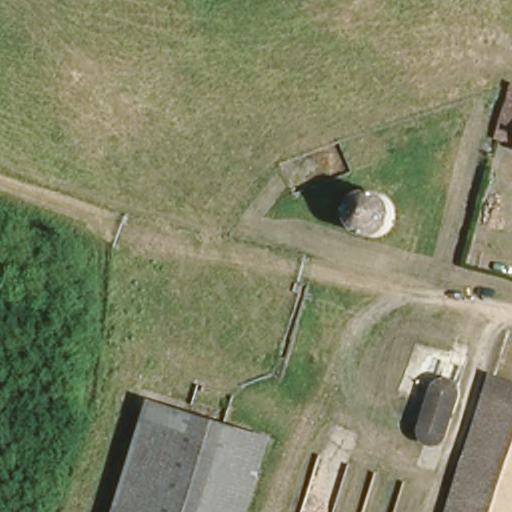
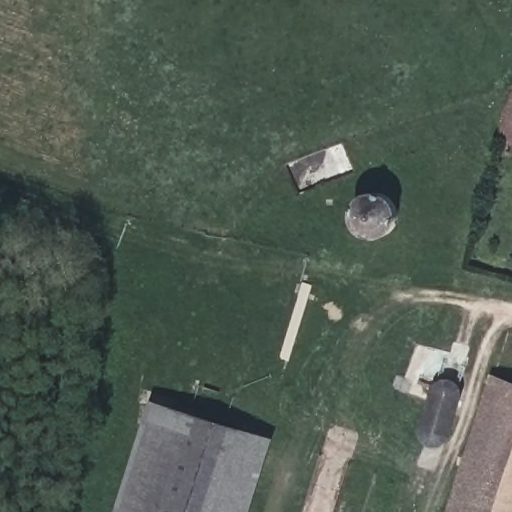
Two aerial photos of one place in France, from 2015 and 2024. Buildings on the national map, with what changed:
unchanged [(512,85),(512,137),(496,133),(512,85)]
unchanged [(379,183),(386,186),(391,189),(395,194),(398,200),(399,207),(398,213),(396,219),(393,224),(388,229),(382,231),(376,233),(369,232),(363,230),(358,226),(353,222),(351,216),(349,209),(350,203),(352,197),(355,191),(359,188),(373,183),(379,183)]
unchanged [(438,379),(443,378),(448,378),(453,380),(457,384),(460,388),(445,438),(440,441),(435,442),(430,442),(425,440),(421,437),(418,433),(435,381),(438,379)]
unchanged [(493,390),(512,396),(512,512),(453,512),(493,390)]
unchanged [(152,392),(240,422),(225,464),(209,512),(111,512),(152,392)]
unchanged [(240,422),(266,431),(253,473),(225,464),(240,422)]
unchanged [(241,512),(209,512),(225,464),(253,473),(241,512)]

